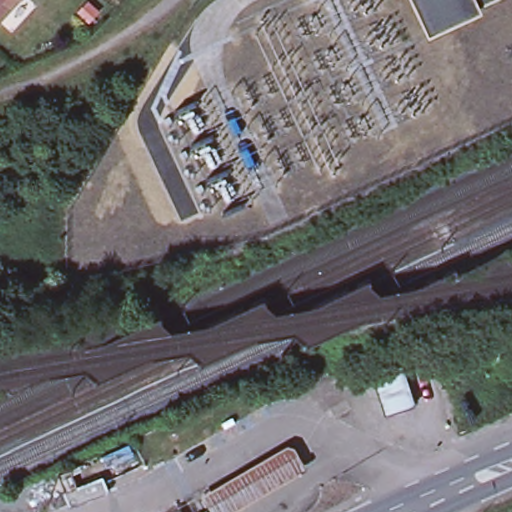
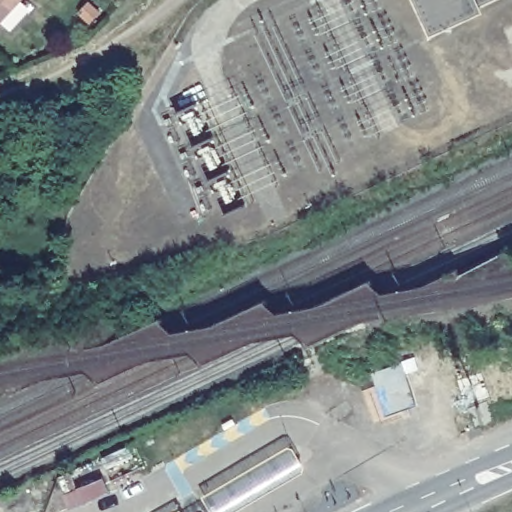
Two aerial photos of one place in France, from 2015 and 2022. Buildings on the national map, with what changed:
unchanged [(0,25),(0,0),(23,0),(0,25)]
unchanged [(454,23),(457,27),(435,37),(434,34),(417,0),(503,0),(454,23)]
unchanged [(387,392),(364,405),(358,394),(381,381),(387,392)]
unchanged [(348,411),(337,416),(334,410),(344,404),(348,411)]
unchanged [(309,476),(243,512),(236,512),(278,459),(295,450),(309,476)]
unchanged [(236,512),(184,512),(278,459),(236,512)]
unchanged [(141,470),(144,479),(146,482),(121,490),(118,481),(118,478),(123,476),(141,470)]
unchanged [(108,495),(103,498),(69,511),(63,497),(102,481),(108,493),(108,495)]

